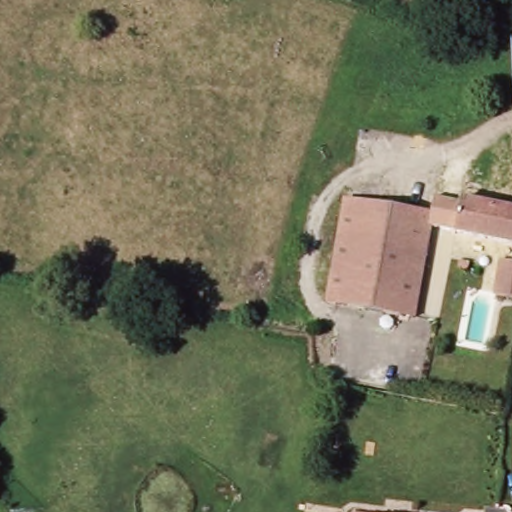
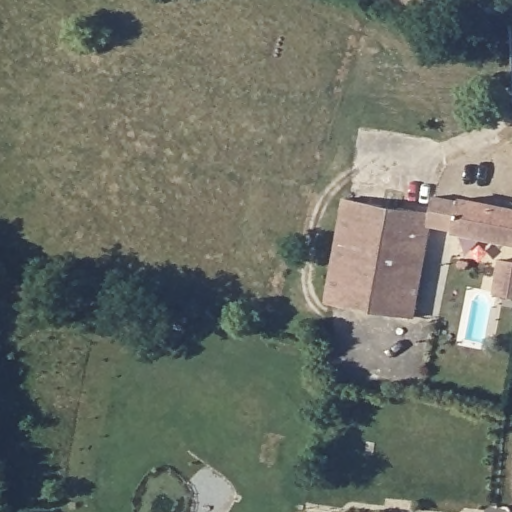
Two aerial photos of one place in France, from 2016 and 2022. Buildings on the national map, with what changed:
unchanged [(347,199),(435,214),(416,318),(328,303),(347,199)]
unchanged [(495,205),(512,209),(512,243),(457,232),(464,199),(495,205)]
unchanged [(471,262),(470,268),(468,269),(462,268),(460,265),(462,260),(471,262)]
unchanged [(512,297),(496,295),(501,260),(512,262),(512,297)]

